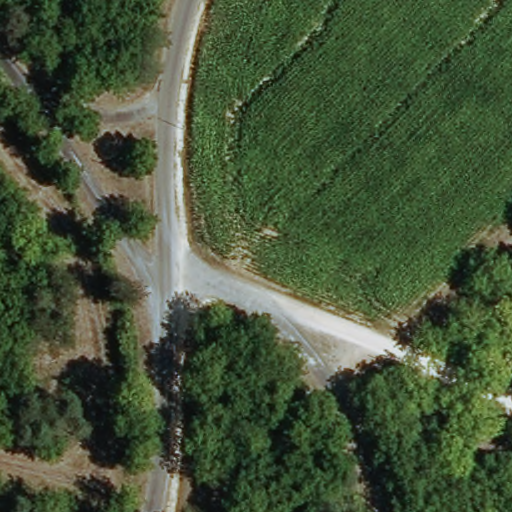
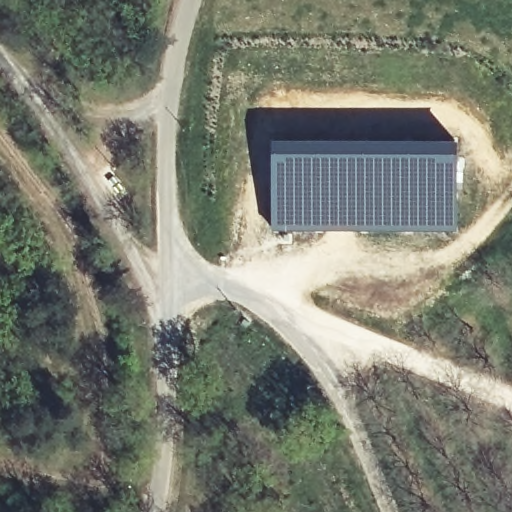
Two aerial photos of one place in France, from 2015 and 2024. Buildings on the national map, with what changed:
new [(457,229),(271,229),(272,139),(457,140),(457,229)]

